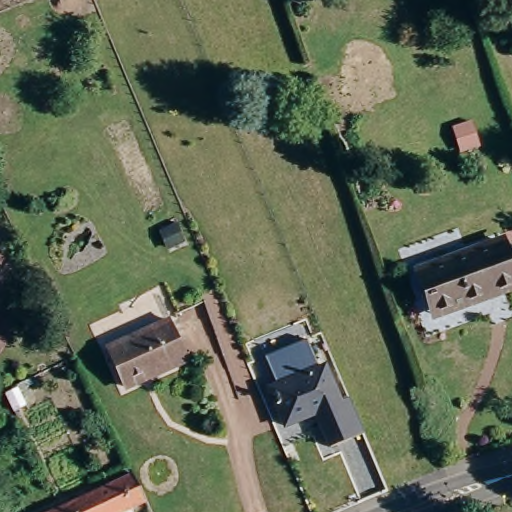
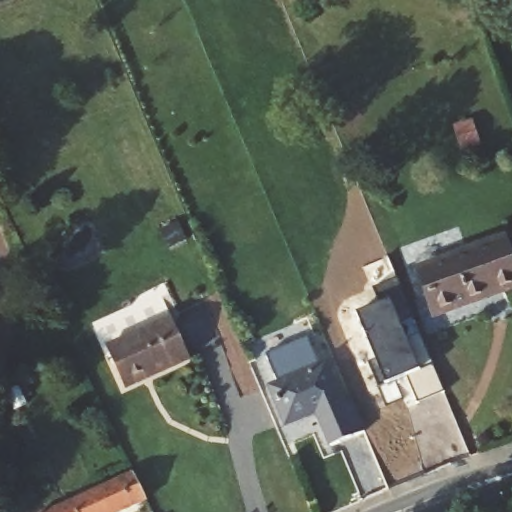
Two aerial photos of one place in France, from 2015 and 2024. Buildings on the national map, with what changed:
unchanged [(475,144),(461,149),(452,126),(467,121),(475,144)]
unchanged [(499,242),(508,267),(512,278),(512,285),(486,294),(487,297),(443,312),(438,295),(427,299),(417,271),(499,242)]
new [(378,389),(368,363),(375,361),(355,315),(381,304),(374,287),(397,277),(445,392),(417,404),(407,377),(378,389)]
unchanged [(168,316),(187,356),(122,386),(104,346),(168,316)]
unchanged [(264,357),(307,340),(319,368),(276,387),(264,357)]
unchanged [(313,413),(282,426),(268,390),(276,387),(319,368),(325,366),(340,402),(344,411),(317,422),(313,413)]
unchanged [(344,411),(340,402),(348,400),(360,427),(362,434),(327,448),(317,422),(344,411)]
unchanged [(145,498),(115,512),(37,512),(130,469),(145,498)]

